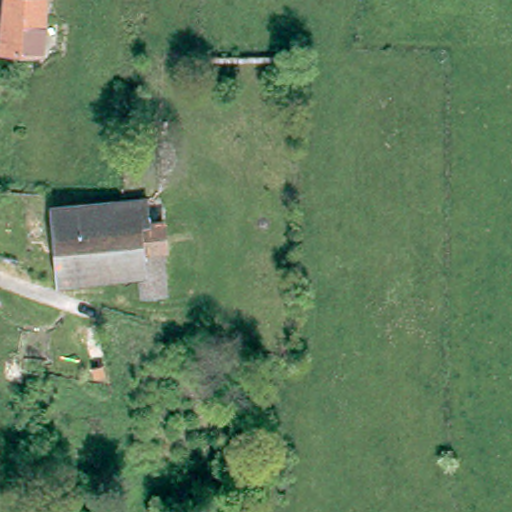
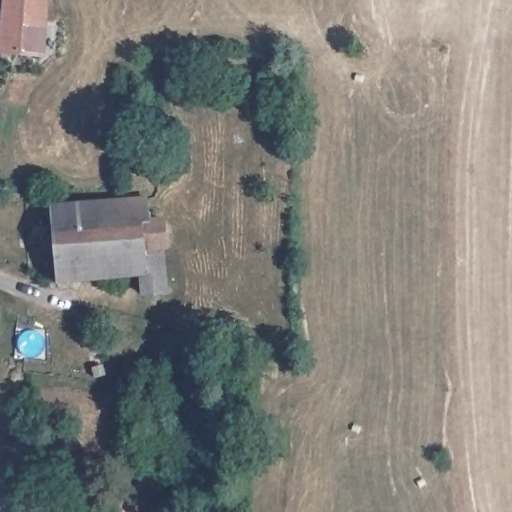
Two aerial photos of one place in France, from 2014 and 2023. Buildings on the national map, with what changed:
unchanged [(0,27),(2,0),(43,0),(42,4),(38,64),(0,61),(0,27)]
unchanged [(160,222),(162,251),(142,253),(144,274),(160,273),(162,295),(140,296),(139,278),(55,285),(47,210),(145,201),(147,224),(160,222)]

